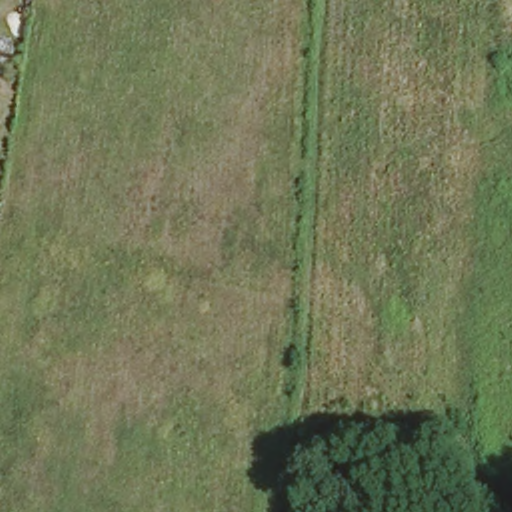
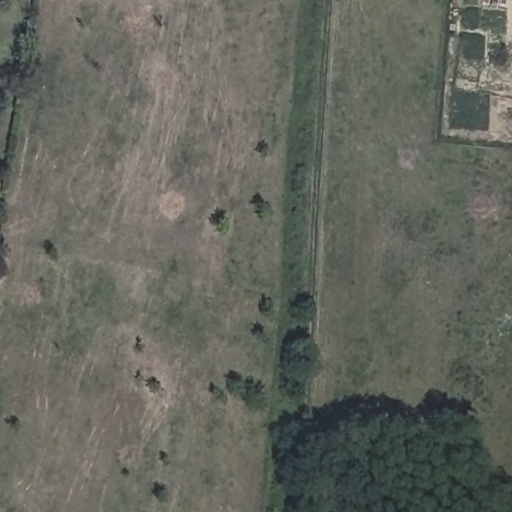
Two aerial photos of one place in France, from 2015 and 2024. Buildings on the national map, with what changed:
[]

